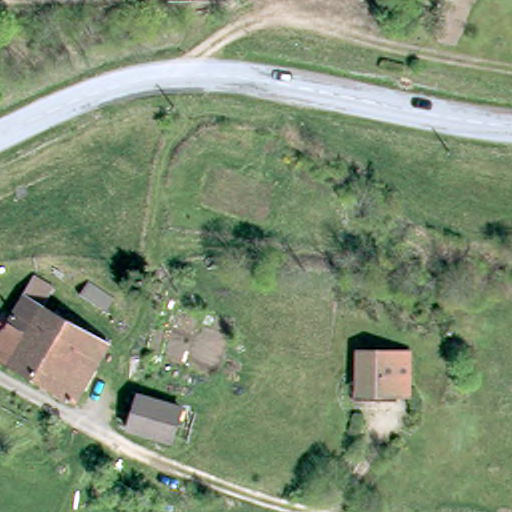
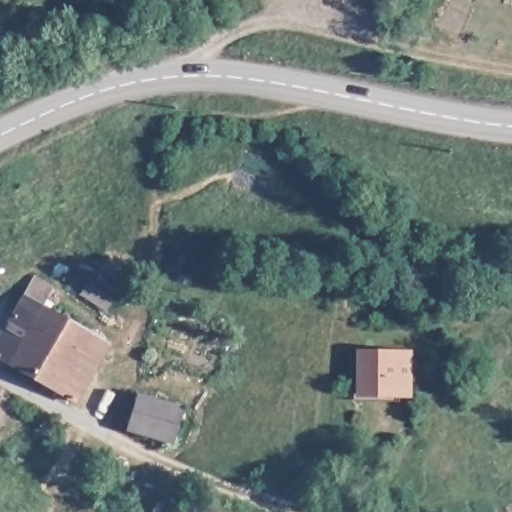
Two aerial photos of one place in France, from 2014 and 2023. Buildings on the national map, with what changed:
unchanged [(0,353),(38,286),(61,298),(52,317),(111,350),(81,404),(0,361),(0,353)]
unchanged [(411,398),(361,393),(365,357),(415,362),(411,398)]
unchanged [(135,441),(140,399),(185,403),(183,434),(181,443),(135,441)]

